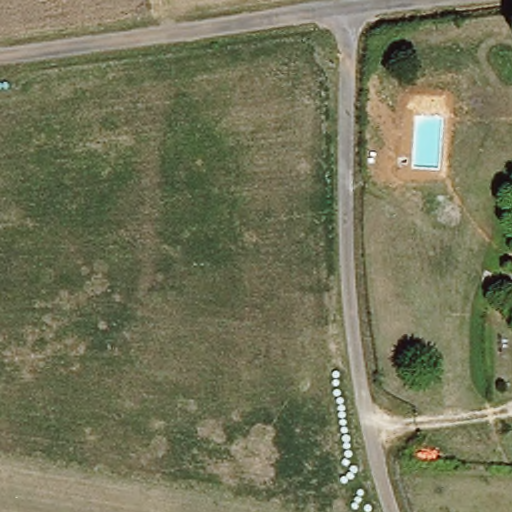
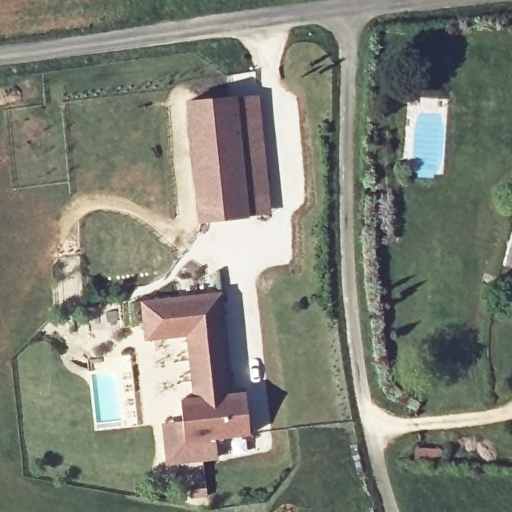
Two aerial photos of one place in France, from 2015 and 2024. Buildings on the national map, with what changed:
new [(261,92),(271,212),(196,222),(184,100),(261,92)]
new [(161,423),(181,418),(179,394),(192,392),(187,331),(145,337),(140,296),(222,288),(230,391),(246,389),(251,432),(217,437),(219,459),(165,463),(161,423)]

